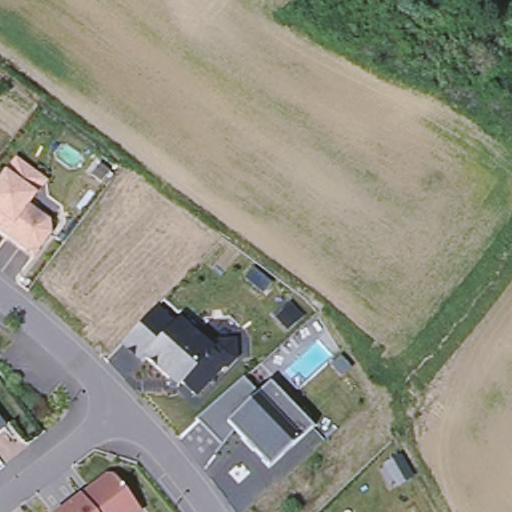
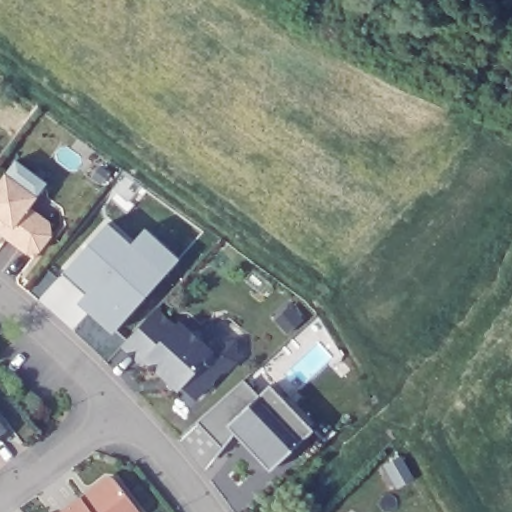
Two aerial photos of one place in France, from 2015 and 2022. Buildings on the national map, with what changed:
unchanged [(9,176),(20,162),(50,184),(40,198),(32,208),(53,224),(55,236),(38,259),(0,232),(0,188),(9,176)]
new [(106,224),(164,276),(114,331),(100,318),(90,310),(94,305),(84,296),(80,301),(79,300),(84,296),(60,275),(106,224)]
unchanged [(271,314),(290,298),(306,316),(287,333),(271,314)]
unchanged [(181,389),(180,390),(174,390),(173,390),(173,383),(173,382),(150,361),(147,364),(127,346),(159,311),(178,329),(182,325),(194,335),(195,335),(202,334),(203,335),(203,342),(202,343),(213,353),(221,345),(239,344),(239,362),(231,371),(228,369),(218,380),(218,386),(211,387),(200,399),(185,386),(182,390),(181,389)]
new [(100,319),(114,332),(111,335),(97,322),(100,319)]
unchanged [(274,386),(289,403),(315,432),(308,438),(271,471),(237,433),(227,448),(202,421),(238,388),(247,380),(262,397),(274,386)]
unchanged [(4,432),(0,435),(0,427),(4,432)]
unchanged [(81,499),(94,489),(106,480),(115,481),(138,512),(64,512),(81,499)]

